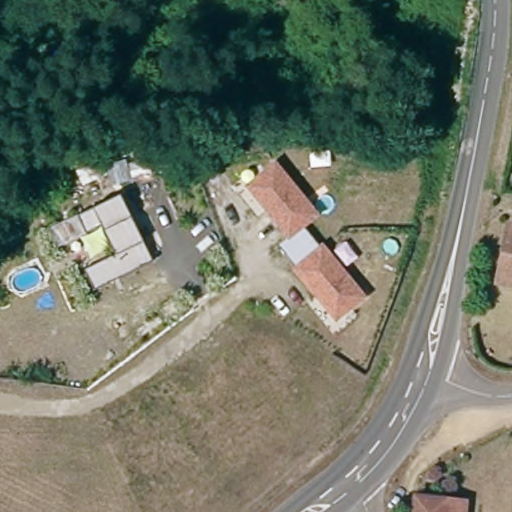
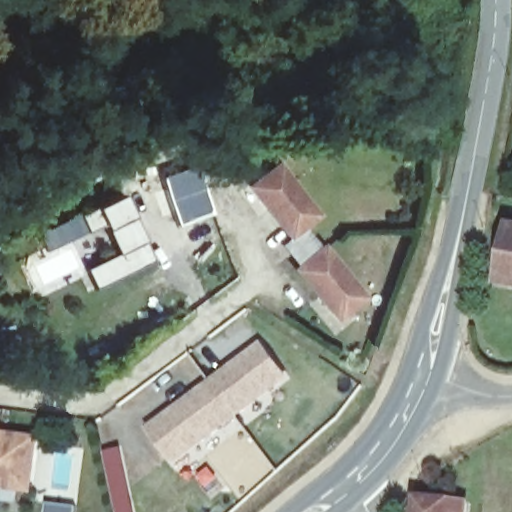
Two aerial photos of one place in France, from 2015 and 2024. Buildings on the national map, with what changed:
unchanged [(153,169),(141,173),(135,174),(131,160),(150,156),(153,169)]
unchanged [(246,185),(277,159),(321,215),(290,239),(246,185)]
new [(212,213),(181,224),(162,177),(193,165),(212,213)]
unchanged [(155,258),(96,288),(86,267),(117,252),(104,223),(88,230),(80,213),(122,192),(155,258)]
unchanged [(501,287),(512,228),(512,289),(501,287)]
unchanged [(290,268),(323,242),(367,298),(335,323),(290,268)]
new [(290,377),(171,466),(143,427),(261,341),(290,377)]
new [(0,431),(39,435),(32,493),(0,489),(0,431)]
new [(114,512),(102,452),(120,449),(132,512),(114,512)]
unchanged [(420,512),(421,499),(444,502),(443,512),(420,512)]
unchanged [(443,512),(444,502),(467,504),(467,512),(443,512)]

